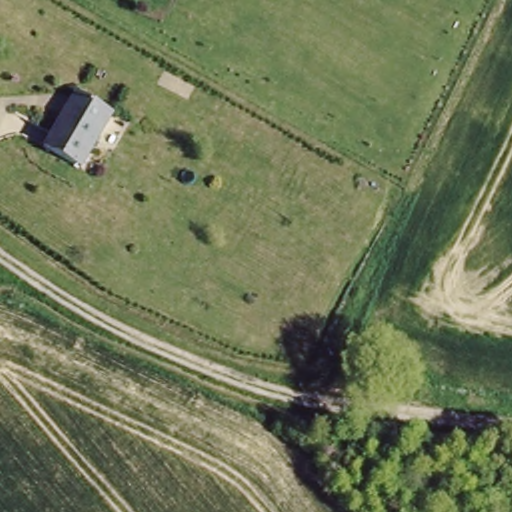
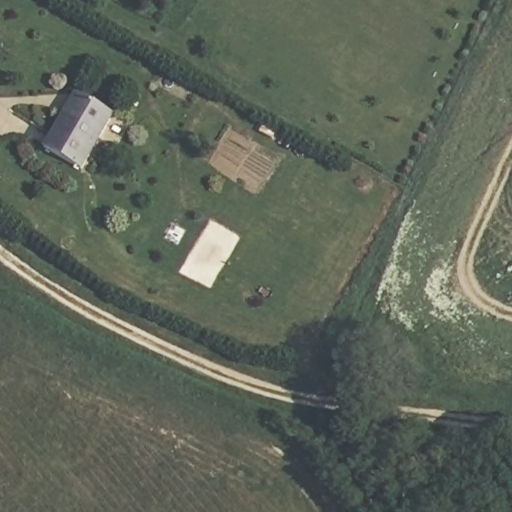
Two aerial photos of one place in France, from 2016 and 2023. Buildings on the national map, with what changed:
unchanged [(76,87),(115,110),(83,166),(44,143),(76,87)]

